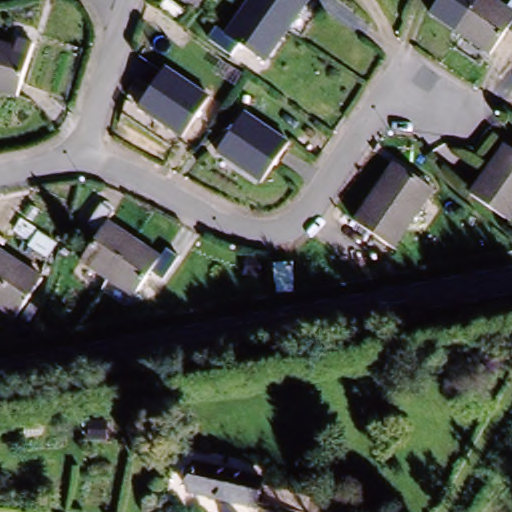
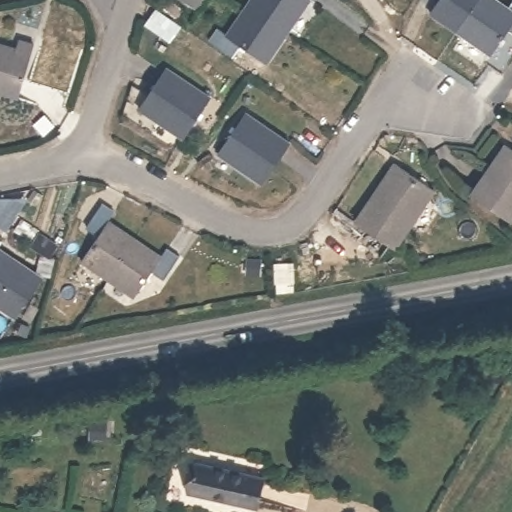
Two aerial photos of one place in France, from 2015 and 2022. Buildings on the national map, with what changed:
unchanged [(241,8),(247,0),(298,0),(306,5),(286,32),(282,37),(241,8)]
unchanged [(434,0),(469,0),(447,29),(424,13),(434,0)]
unchanged [(469,0),(487,0),(512,17),(512,37),(502,30),(484,55),(447,29),(469,0)]
unchanged [(222,34),(241,8),(282,37),(262,62),(232,41),(225,51),(205,37),(212,27),(222,34)]
unchanged [(0,96),(0,58),(10,61),(14,52),(37,60),(22,103),(0,96)]
unchanged [(203,101),(178,140),(135,111),(160,73),(203,101)]
unchanged [(257,183),(215,153),(242,115),(283,145),(257,183)]
unchanged [(467,197),(506,149),(512,154),(512,216),(504,226),(467,197)]
unchanged [(350,220),(392,165),(427,191),(383,246),(350,220)]
unchanged [(95,237),(82,229),(97,204),(110,213),(102,224),(132,243),(105,281),(78,264),(95,237)]
unchanged [(158,260),(165,248),(177,257),(162,281),(149,273),(130,297),(105,281),(132,243),(158,260)]
unchanged [(10,319),(0,313),(0,259),(35,282),(10,319)]
unchanged [(182,494),(188,461),(267,476),(260,509),(182,494)]

